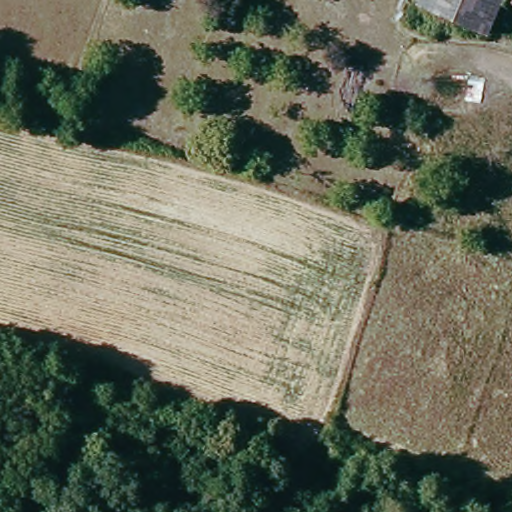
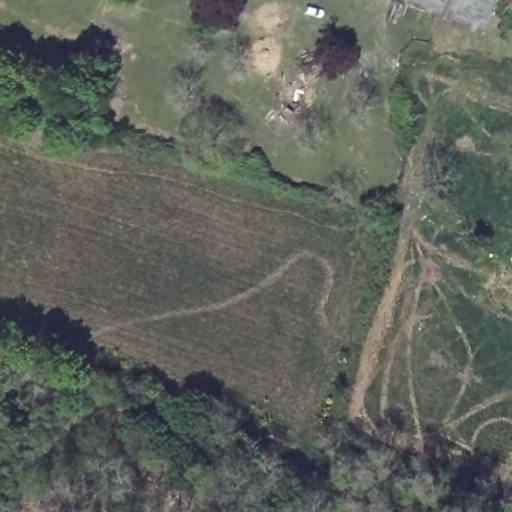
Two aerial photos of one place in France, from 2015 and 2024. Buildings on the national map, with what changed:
unchanged [(487,38),(420,15),(423,0),(512,0),(512,5),(497,1),(487,38)]

